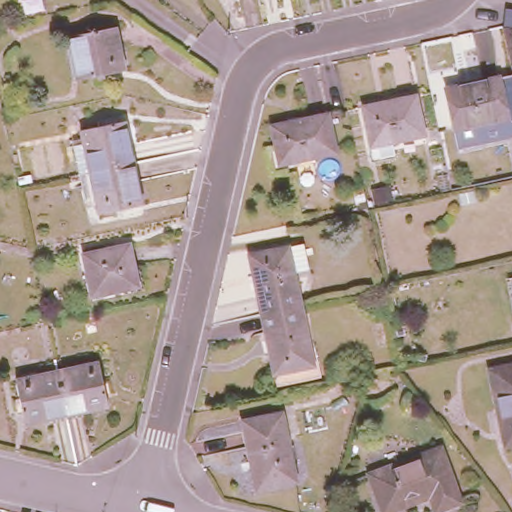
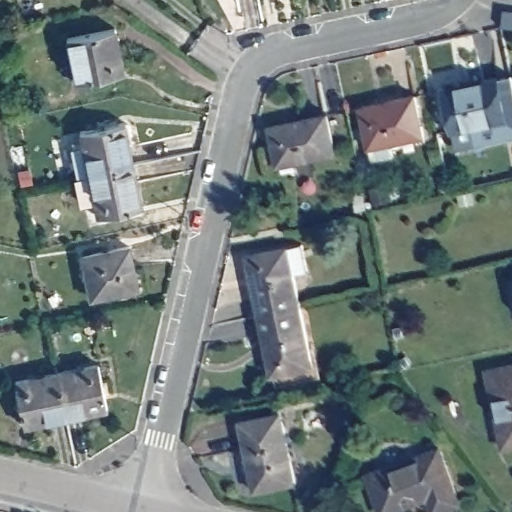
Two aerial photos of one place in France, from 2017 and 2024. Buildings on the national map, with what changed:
unchanged [(116,27),(127,69),(79,80),(71,37),(116,27)]
unchanged [(505,122),(453,134),(444,96),(497,84),(505,122)]
unchanged [(422,135),(370,148),(361,110),(413,96),(422,135)]
unchanged [(327,110),(335,149),(279,162),(270,123),(327,110)]
unchanged [(77,147),(87,144),(84,131),(127,122),(135,163),(83,174),(77,147)]
unchanged [(145,206),(102,215),(99,199),(89,201),(83,174),(135,163),(145,206)]
unchanged [(250,254),(290,244),(302,302),(262,310),(250,254)]
unchanged [(131,249),(141,290),(93,301),(84,259),(131,249)]
unchanged [(315,361),(275,370),(262,310),(302,302),(315,361)]
unchanged [(512,363),(512,435),(495,367),(512,363)]
unchanged [(100,366),(111,410),(69,419),(60,375),(100,366)]
unchanged [(27,428),(18,384),(60,375),(69,419),(27,428)]
unchanged [(285,409),(297,479),(259,487),(244,420),(285,409)]
unchanged [(456,501),(431,509),(427,497),(380,511),(367,471),(440,447),(456,501)]

